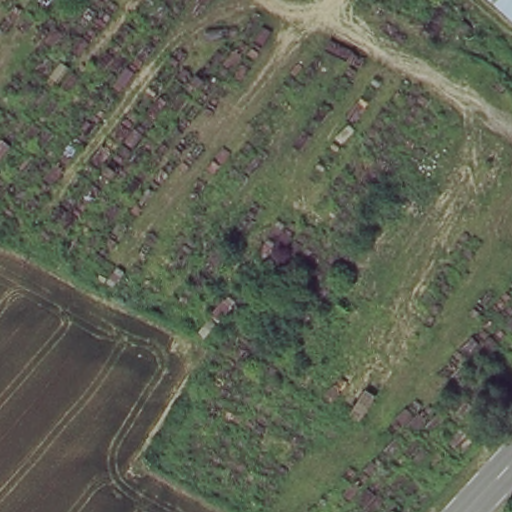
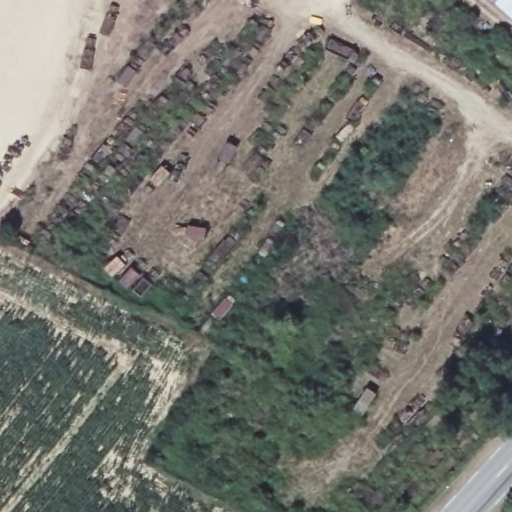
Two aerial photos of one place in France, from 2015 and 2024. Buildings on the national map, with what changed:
unchanged [(494,0),(512,0),(512,17),(494,0)]

